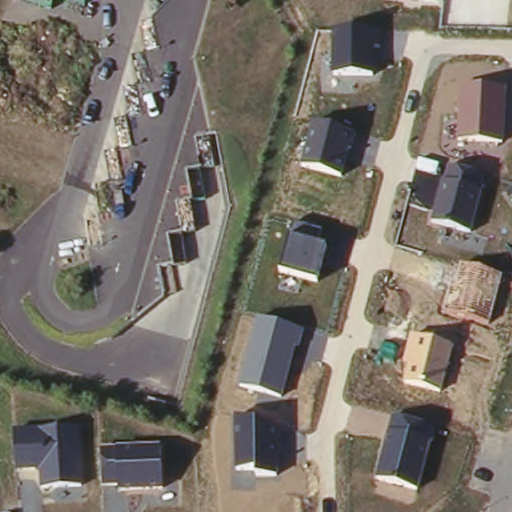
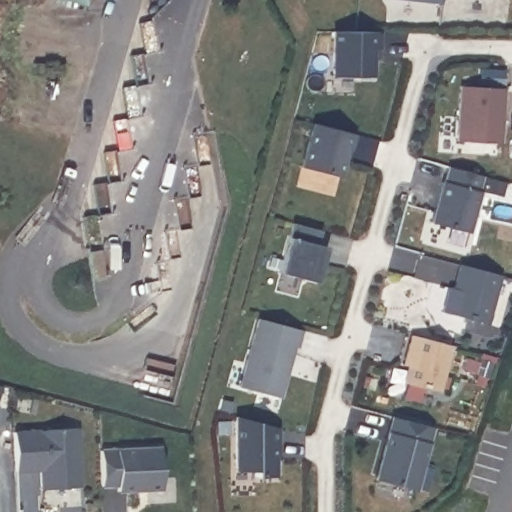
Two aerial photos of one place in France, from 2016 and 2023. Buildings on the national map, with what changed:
unchanged [(410,0),(445,0),(444,4),(410,0)]
unchanged [(334,30),(383,30),(383,50),(378,50),(377,78),(334,77),(334,30)]
unchanged [(463,87),(508,90),(505,145),(459,142),(463,87)]
unchanged [(315,123),(360,135),(355,155),(349,153),(342,180),(302,169),(315,123)]
unchanged [(449,166),(488,176),(473,235),(431,224),(449,166)]
unchanged [(291,240),(295,226),(327,232),(324,247),(315,282),(282,272),(291,240)]
unchanged [(459,263),(506,277),(490,327),(444,313),(459,263)]
unchanged [(258,319),(308,332),(304,347),(299,346),(283,400),(239,388),(258,319)]
unchanged [(410,367),(402,366),(410,334),(456,346),(444,394),(405,385),(410,367)]
unchanged [(393,415),(439,427),(421,495),(376,482),(393,415)]
unchanged [(237,417),(278,422),(278,477),(254,477),(254,471),(237,471),(237,417)]
unchanged [(43,492),(41,470),(16,472),(14,432),(79,426),(84,488),(43,492)]
unchanged [(121,494),(120,487),(104,487),(103,449),(161,447),(164,491),(121,494)]

